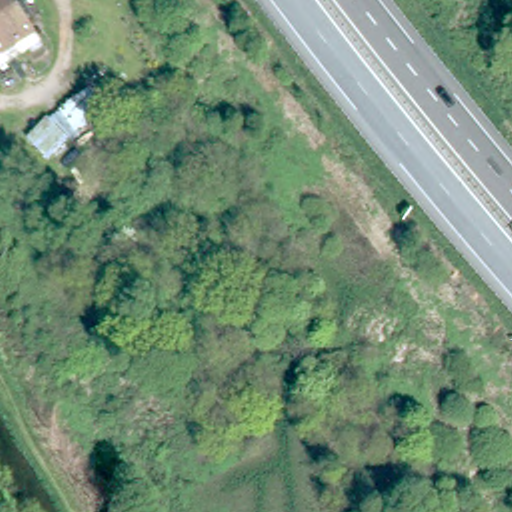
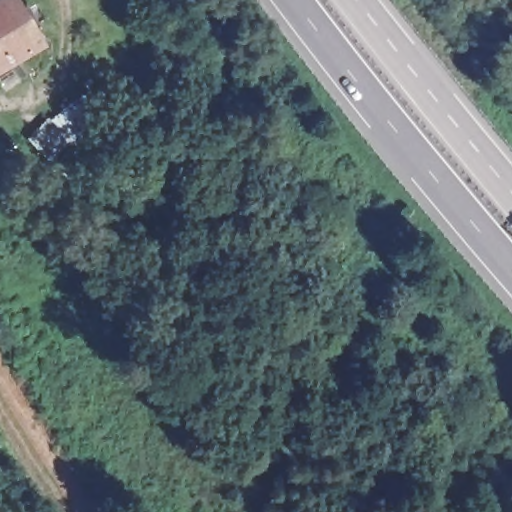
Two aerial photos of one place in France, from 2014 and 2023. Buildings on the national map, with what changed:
unchanged [(21,0),(40,31),(0,56),(0,0),(21,0)]

